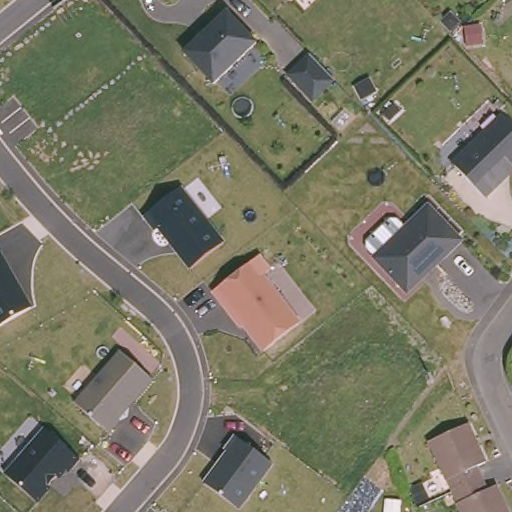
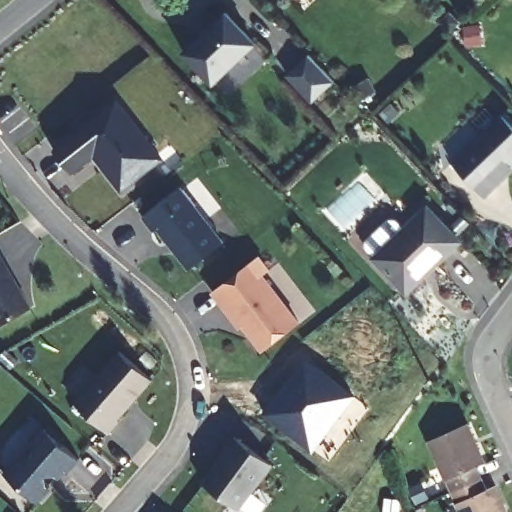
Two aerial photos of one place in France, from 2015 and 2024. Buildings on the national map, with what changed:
unchanged [(226,13),(256,44),(213,84),(184,53),(226,13)]
unchanged [(311,55),(311,54),(319,63),(334,80),(313,101),(289,75),(311,55)]
new [(94,158),(72,174),(53,149),(118,102),(163,160),(121,191),(94,158)]
unchanged [(512,127),(512,164),(492,183),(496,187),(484,197),(452,163),(502,115),(512,127)]
unchanged [(184,187),(224,242),(191,268),(158,227),(154,231),(144,218),(184,187)]
unchanged [(427,206),(461,241),(436,265),(434,263),(404,291),(373,258),(427,206)]
unchanged [(2,249),(33,308),(0,328),(0,251),(2,249)]
unchanged [(272,270),(266,275),(301,324),(262,352),(245,330),(238,329),(211,293),(262,254),(272,270)]
unchanged [(153,381),(108,436),(72,403),(119,352),(153,381)]
new [(358,394),(314,452),(264,413),(306,356),(358,394)]
unchanged [(428,440),(468,424),(484,463),(474,468),(479,480),(450,491),(428,440)]
unchanged [(81,459),(38,505),(2,473),(43,427),(81,459)]
unchanged [(274,464),(240,512),(239,512),(202,484),(234,435),(274,464)]
unchanged [(479,480),(484,492),(495,488),(505,512),(459,512),(450,491),(479,480)]

